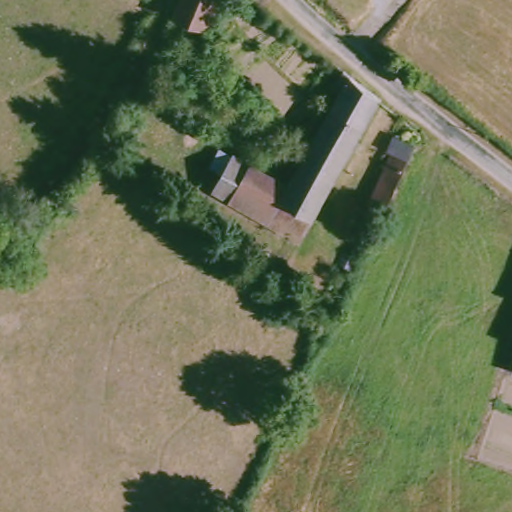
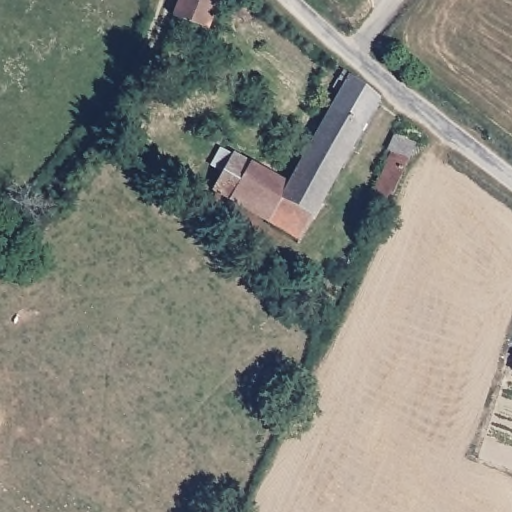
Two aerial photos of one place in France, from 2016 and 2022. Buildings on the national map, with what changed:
unchanged [(226,0),(211,35),(178,23),(187,0),(226,0)]
unchanged [(240,159),(296,191),(358,80),(385,101),(307,244),(220,195),(240,159)]
unchanged [(382,199),(402,155),(397,151),(403,136),(425,147),(396,207),(382,199)]

